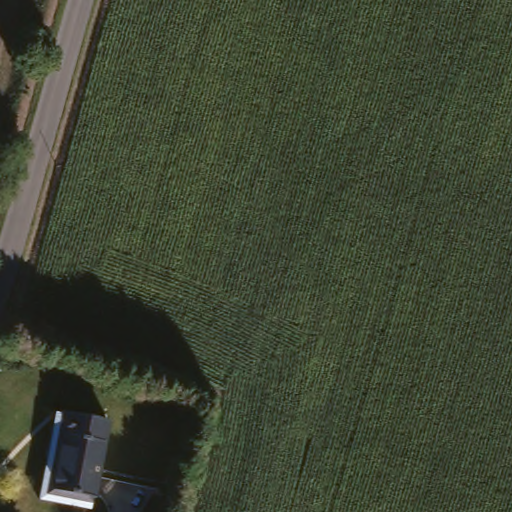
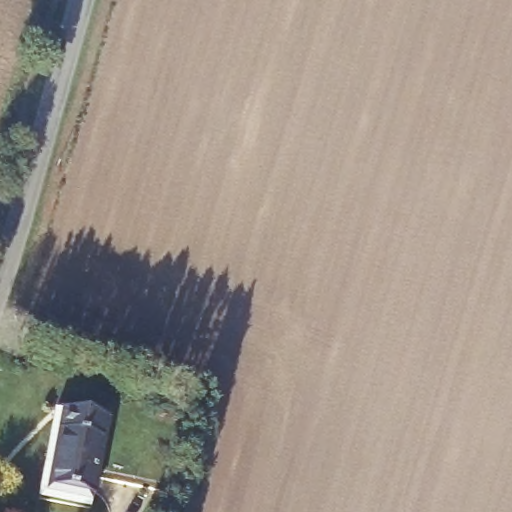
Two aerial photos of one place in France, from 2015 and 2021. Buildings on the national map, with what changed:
unchanged [(101,487),(98,500),(35,487),(48,420),(54,421),(59,402),(66,402),(115,412),(101,487)]

